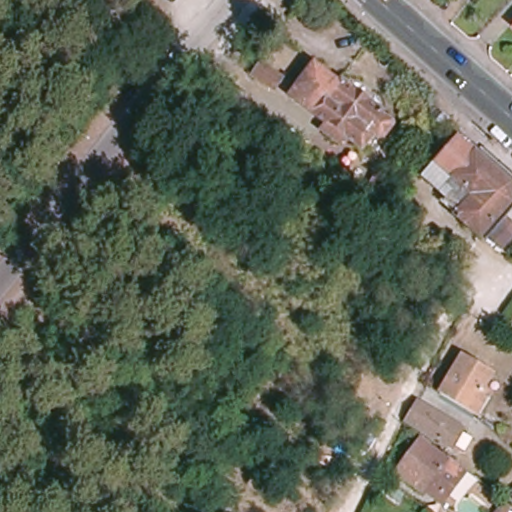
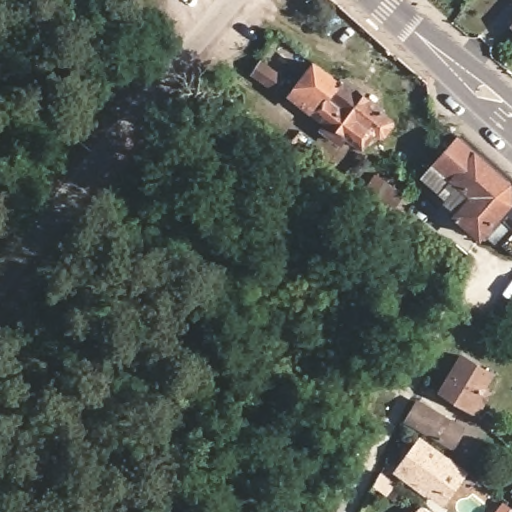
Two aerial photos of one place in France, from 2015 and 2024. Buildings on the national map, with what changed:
unchanged [(280,79),(272,89),(255,76),(263,65),(280,79)]
unchanged [(343,88),(345,85),(385,113),(383,117),(393,124),(383,138),(376,133),(363,150),(345,137),(339,144),(322,131),(327,123),(291,96),(313,66),(343,88)]
unchanged [(509,180),(511,197),(480,232),(479,232),(478,230),(442,199),(449,192),(427,173),(460,136),(509,180)]
unchanged [(512,240),(504,250),(487,237),(504,211),(512,218),(512,240)]
unchanged [(478,416),(472,412),(441,395),(461,358),(493,375),(484,391),(490,394),(478,416)]
unchanged [(462,430),(453,449),(405,423),(415,404),(462,430)]
unchanged [(428,495),(426,496),(396,474),(420,442),(447,462),(449,459),(466,473),(447,499),(442,506),(428,495)]
unchanged [(500,512),(504,507),(510,512),(500,512)]
unchanged [(427,512),(419,512),(422,509),(427,512)]

